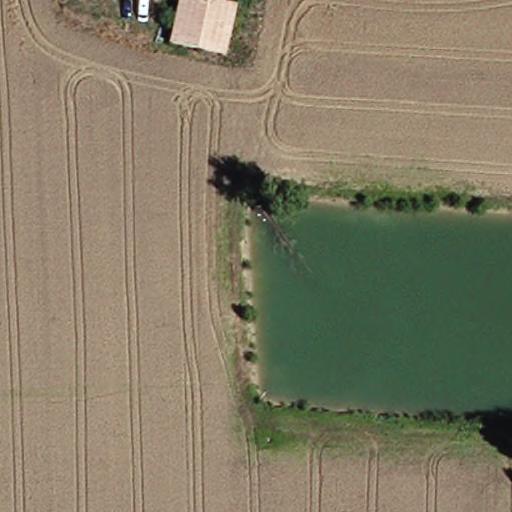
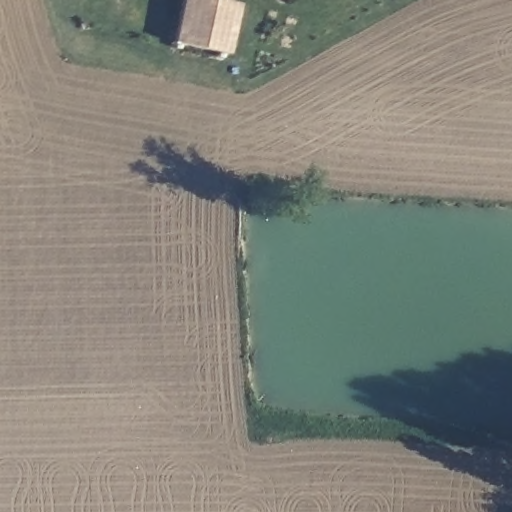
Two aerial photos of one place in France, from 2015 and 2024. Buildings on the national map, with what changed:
unchanged [(186,39),(194,0),(223,0),(242,5),(236,49),(186,39)]

